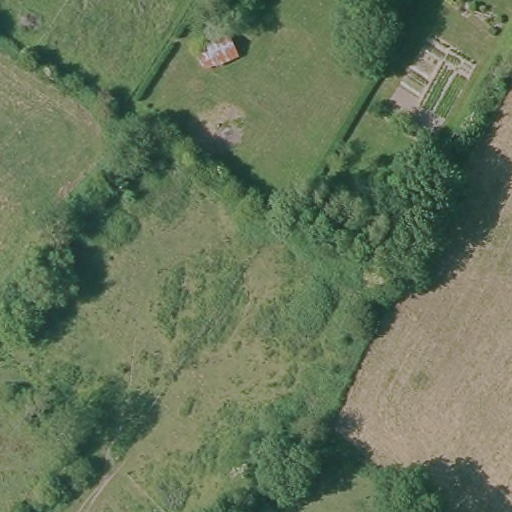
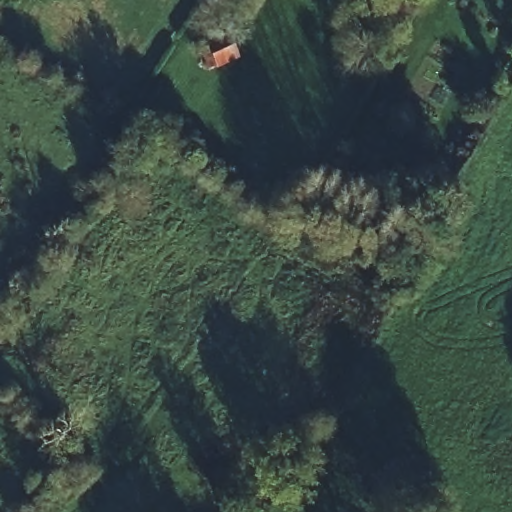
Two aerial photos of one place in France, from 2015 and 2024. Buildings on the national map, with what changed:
unchanged [(220,48),(230,66),(202,83),(192,65),(220,48)]

